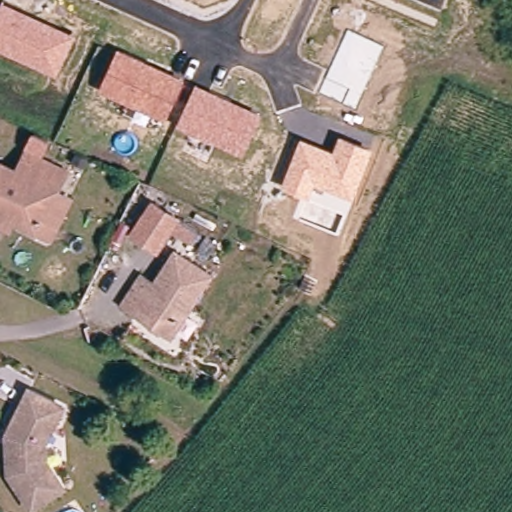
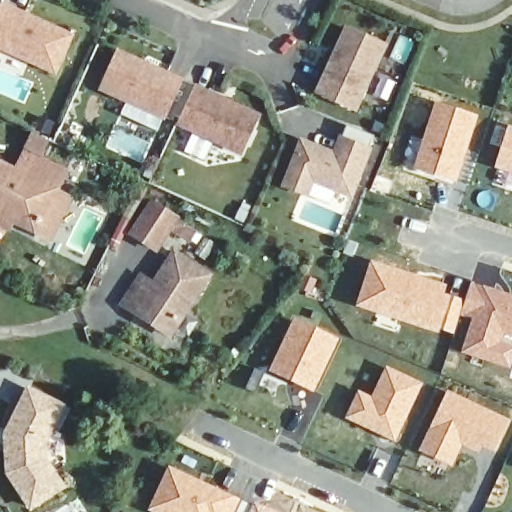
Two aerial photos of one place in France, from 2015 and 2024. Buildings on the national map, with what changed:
unchanged [(56,77),(0,52),(0,4),(1,0),(75,32),(56,77)]
new [(390,45),(358,114),(316,93),(346,26),(390,45)]
unchanged [(185,79),(166,122),(98,92),(119,48),(185,79)]
unchanged [(261,114),(244,157),(177,129),(197,85),(261,114)]
new [(457,183),(415,169),(436,102),(479,117),(457,183)]
new [(495,169),(508,126),(512,127),(512,174),(495,169)]
unchanged [(374,148),(353,201),(315,186),(308,200),(280,189),(302,138),(333,151),(340,136),(374,148)]
unchanged [(0,221),(0,218),(0,163),(16,171),(25,156),(63,176),(56,192),(72,200),(51,237),(35,229),(17,221),(12,227),(0,221)]
unchanged [(205,240),(183,227),(169,251),(145,236),(165,204),(189,218),(210,231),(205,240)]
unchanged [(132,307),(120,299),(141,272),(152,280),(175,252),(212,280),(173,331),(170,335),(132,307)]
new [(505,335),(502,342),(512,346),(512,363),(510,370),(460,352),(472,318),(461,316),(453,335),(442,331),(440,335),(355,307),(371,261),(447,285),(444,294),(465,301),(471,283),(512,296),(512,338),(505,335)]
new [(295,318),(340,340),(315,393),(270,372),(295,318)]
new [(395,443),(345,418),(359,391),(371,397),(386,367),(423,384),(395,443)]
unchanged [(60,403),(45,432),(45,457),(60,483),(30,505),(6,471),(3,433),(14,430),(16,418),(12,410),(28,387),(60,403)]
new [(418,452),(447,391),(511,421),(495,454),(481,448),(479,453),(462,446),(452,467),(418,452)]
new [(148,511),(169,467),(242,500),(236,512),(150,512),(148,511)]
new [(255,503),(274,512),(250,512),(255,503)]

